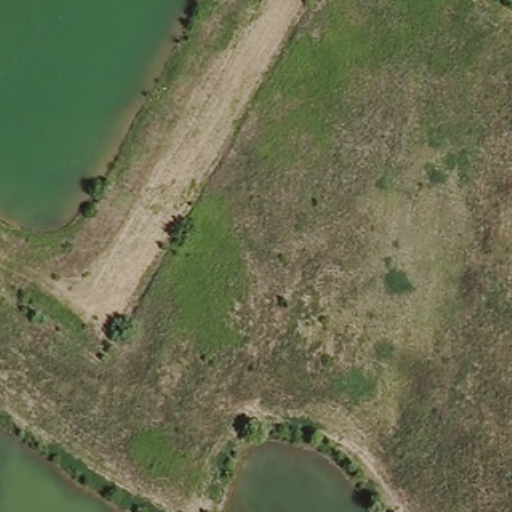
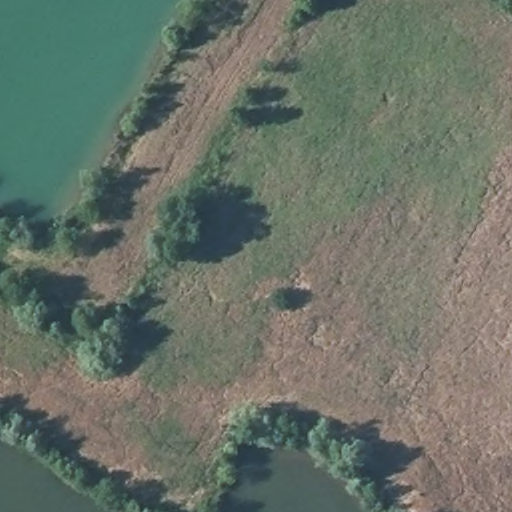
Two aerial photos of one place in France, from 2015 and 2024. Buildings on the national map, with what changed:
[]

